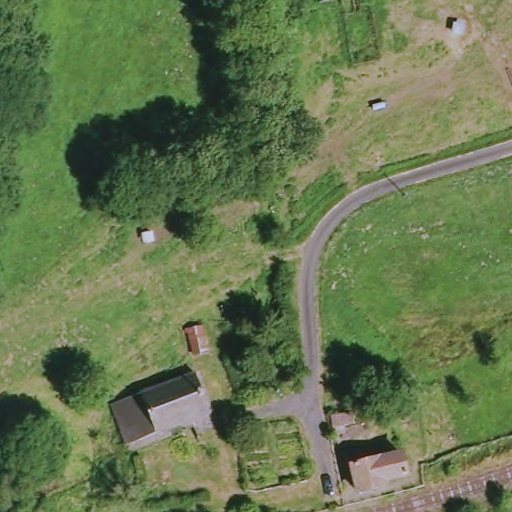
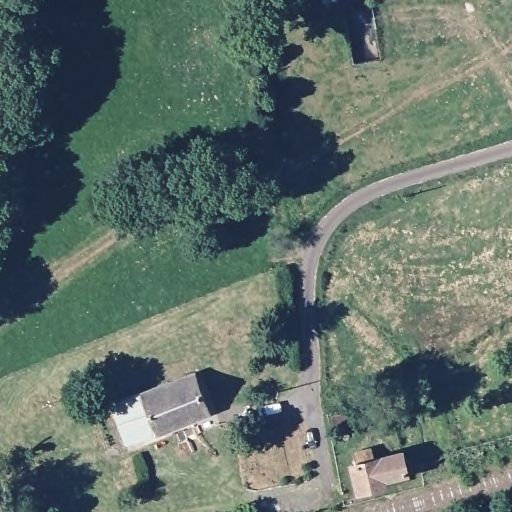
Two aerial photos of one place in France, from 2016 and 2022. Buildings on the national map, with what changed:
unchanged [(332,2),(332,0),(344,0),(332,2)]
unchanged [(115,407),(200,376),(215,415),(130,447),(115,407)]
unchanged [(363,497),(358,468),(364,467),(362,456),(377,452),(380,463),(407,457),(412,479),(392,483),(392,491),(363,497)]

